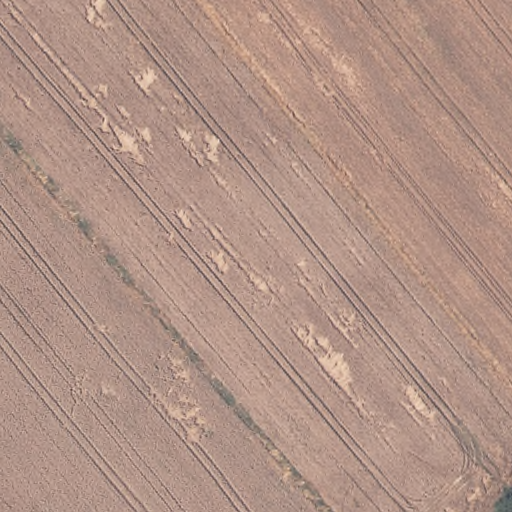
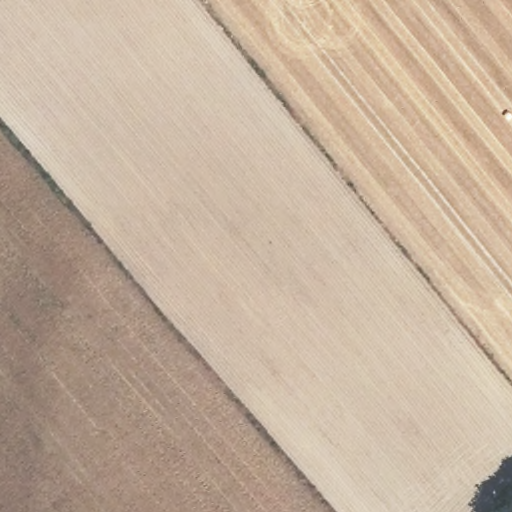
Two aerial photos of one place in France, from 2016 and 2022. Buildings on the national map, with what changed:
[]

